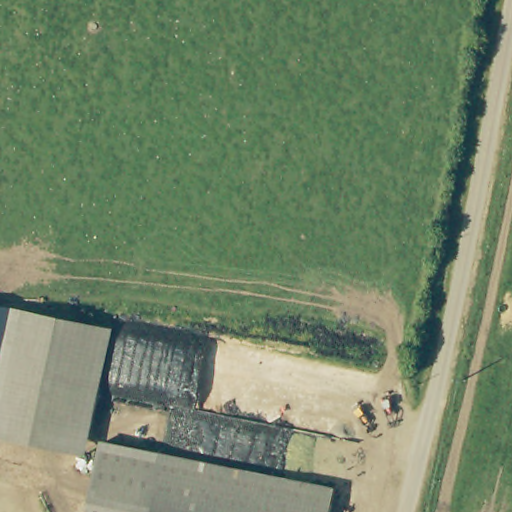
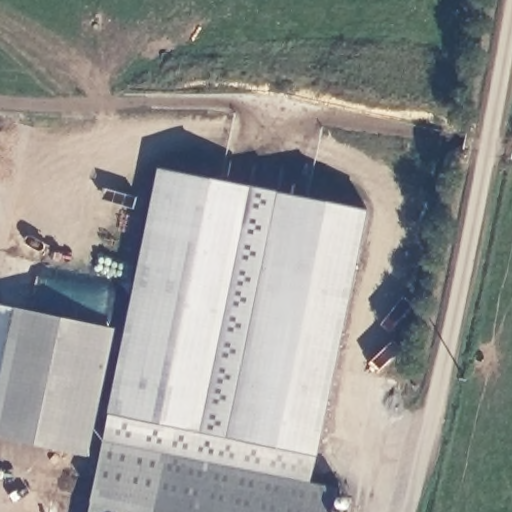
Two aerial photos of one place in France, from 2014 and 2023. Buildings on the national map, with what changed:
new [(319,457),(311,484),(164,454),(104,442),(110,413),(160,169),(369,212),(319,457)]
unchanged [(112,330),(87,457),(0,440),(0,307),(112,330)]
unchanged [(104,442),(164,454),(152,512),(90,512),(104,442)]
unchanged [(337,489),(332,512),(152,512),(164,454),(337,489)]

